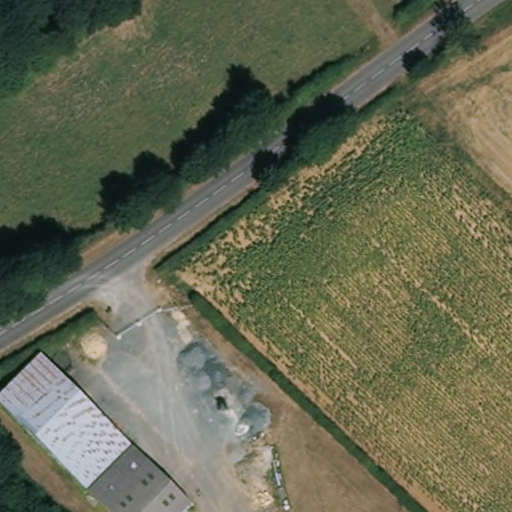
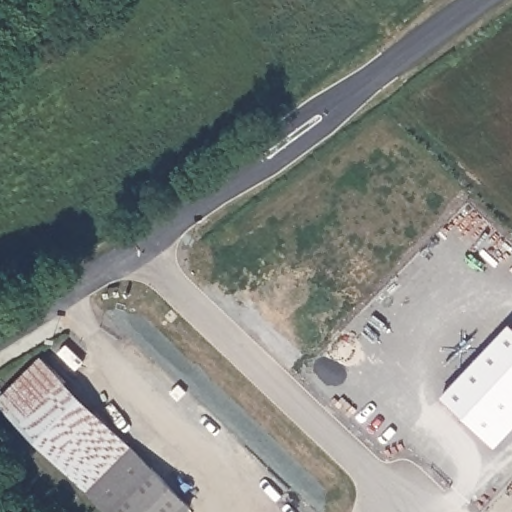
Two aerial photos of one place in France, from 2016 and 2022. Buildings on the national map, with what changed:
new [(512,324),(512,428),(496,446),(441,395),(511,323),(512,324)]
unchanged [(185,512),(110,512),(0,402),(0,401),(42,359),(190,507),(185,512)]

